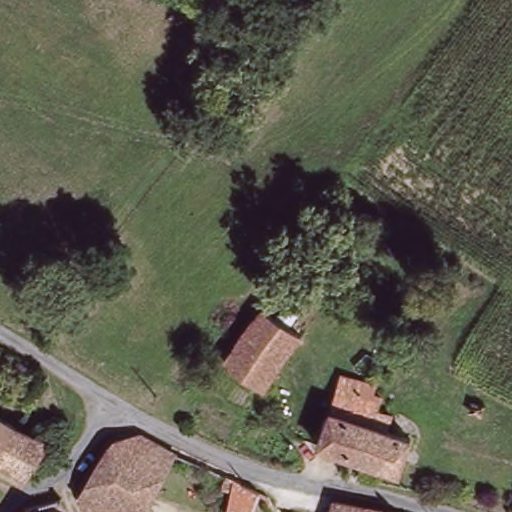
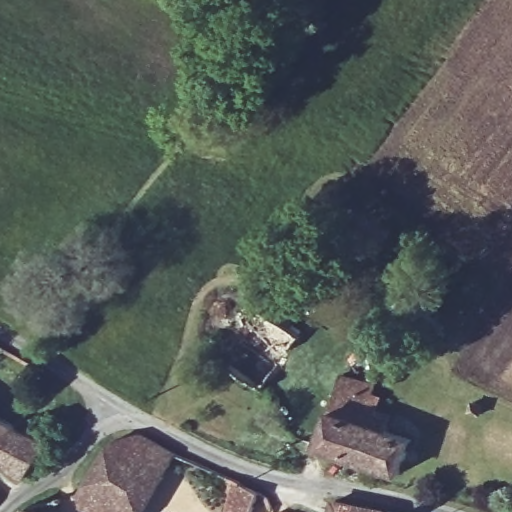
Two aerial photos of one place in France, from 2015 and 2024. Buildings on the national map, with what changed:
unchanged [(259,391),(222,366),(258,313),(295,338),(259,391)]
unchanged [(387,419),(383,432),(407,440),(396,476),(315,449),(337,381),(340,375),(357,379),(373,386),(369,398),(380,402),(376,416),(387,419)]
unchanged [(0,420),(19,432),(2,461),(0,460),(0,420)]
unchanged [(19,432),(49,443),(27,476),(2,461),(19,432)]
unchanged [(112,444),(136,438),(171,456),(141,512),(89,512),(86,510),(77,499),(112,444)]
unchanged [(228,512),(234,498),(225,495),(230,485),(258,497),(251,512),(228,512)]
unchanged [(370,512),(329,512),(332,503),(370,512)]
unchanged [(27,512),(24,512),(25,511),(27,512)]

